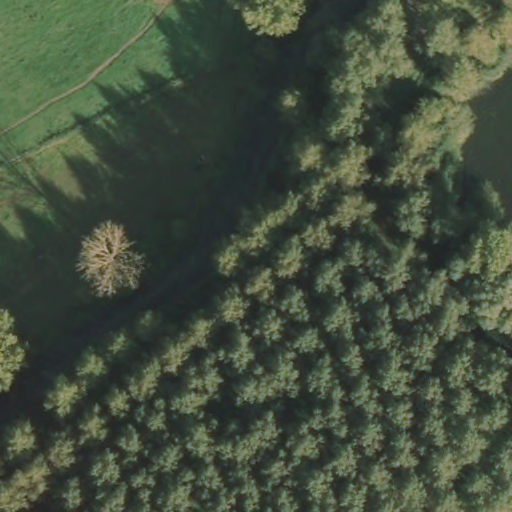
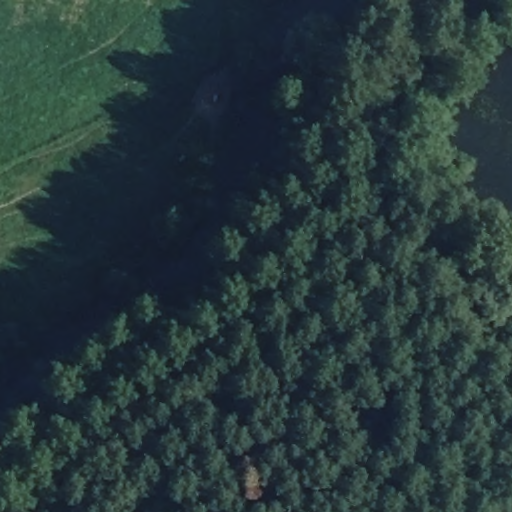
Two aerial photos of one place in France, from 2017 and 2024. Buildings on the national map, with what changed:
unchanged [(510,315),(512,324),(512,345),(497,350),(488,321),(510,315)]

